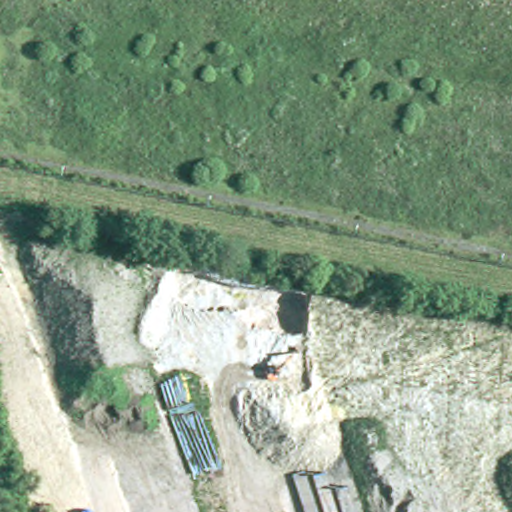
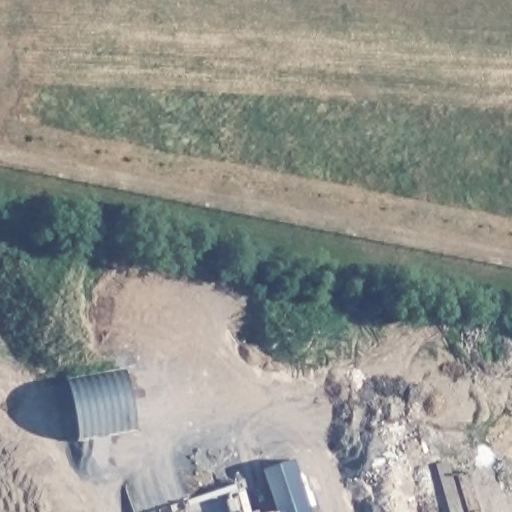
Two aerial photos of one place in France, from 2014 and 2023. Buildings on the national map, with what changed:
new [(64,380),(124,369),(137,430),(78,442),(64,380)]
new [(293,459),(311,512),(276,512),(262,470),(293,459)]

